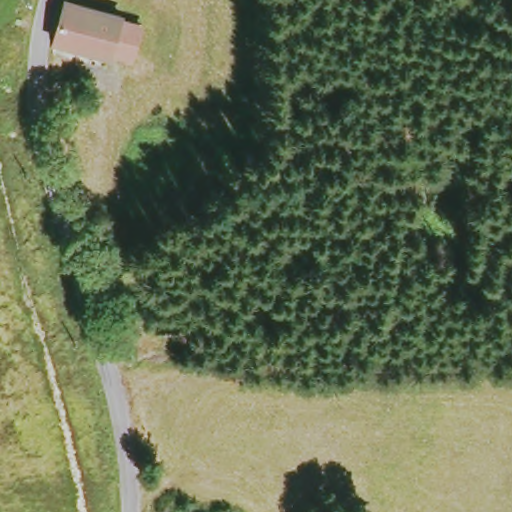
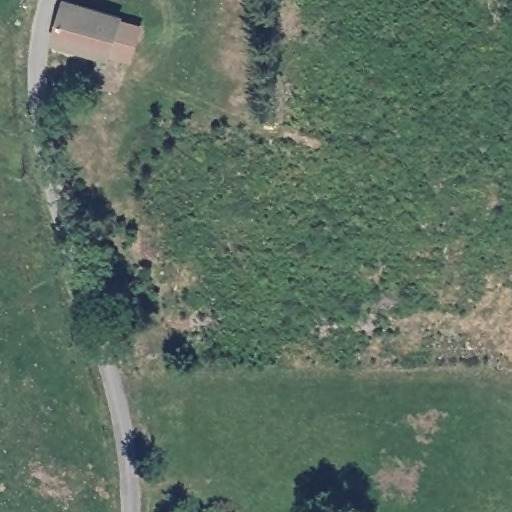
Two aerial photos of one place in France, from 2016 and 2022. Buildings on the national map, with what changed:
unchanged [(67,0),(118,14),(106,52),(53,38),(63,0),(67,0)]

